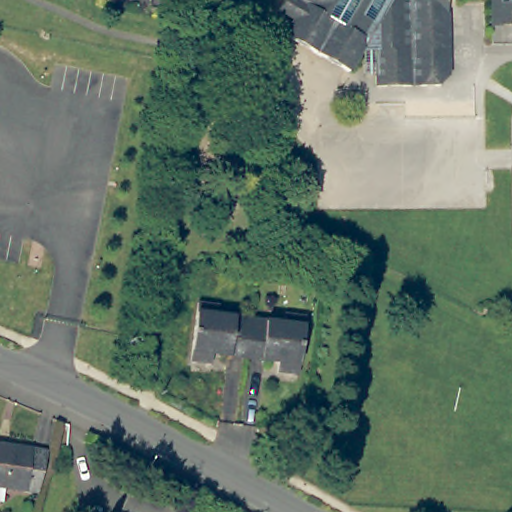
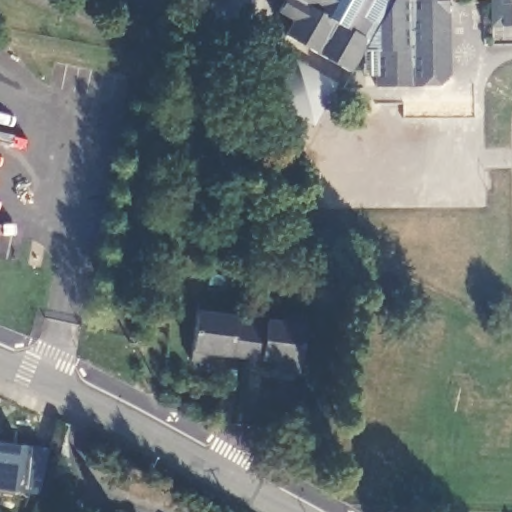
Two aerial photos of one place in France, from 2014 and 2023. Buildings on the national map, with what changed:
unchanged [(448,76),(439,86),(375,85),(374,51),(360,51),(348,72),(285,37),(284,36),(292,21),(277,13),(284,0),(447,0),(448,76)]
unchanged [(491,0),(512,0),(512,25),(490,25),(491,0)]
unchanged [(223,304),(222,313),(286,321),(287,311),(309,314),(301,377),(280,374),(281,363),(216,355),(215,366),(193,363),(200,301),(223,304)]
unchanged [(0,502),(0,444),(46,450),(35,491),(2,487),(1,502),(0,502)]

